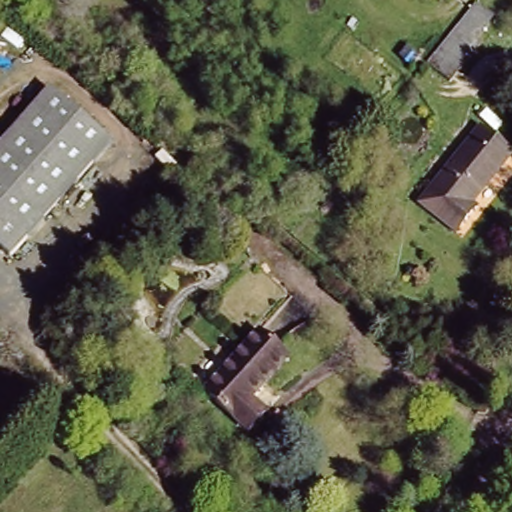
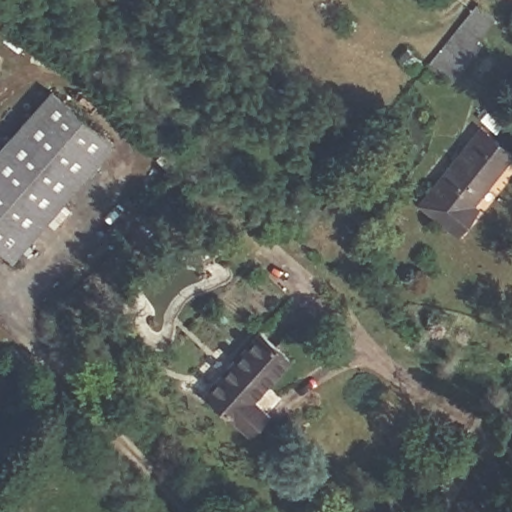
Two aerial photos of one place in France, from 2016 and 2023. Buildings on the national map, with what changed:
unchanged [(450,82),(427,63),(458,25),(476,3),(492,14),(473,38),(481,44),(450,82)]
unchanged [(111,141),(10,253),(0,244),(0,147),(52,90),(111,141)]
unchanged [(480,123),(510,148),(465,202),(472,207),(453,230),(416,199),(480,123)]
unchanged [(255,331),(281,356),(244,395),(252,402),(260,410),(259,411),(243,427),(202,387),(255,331)]

